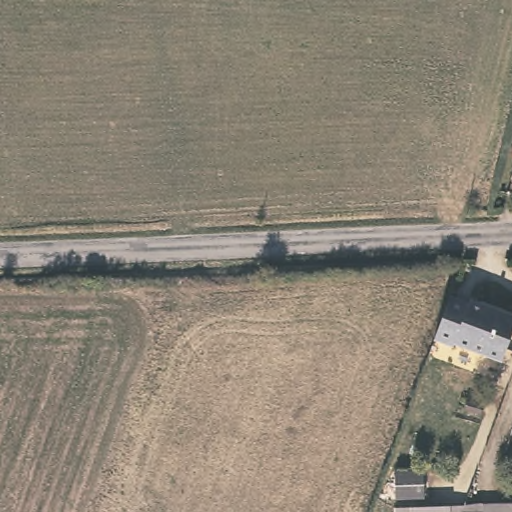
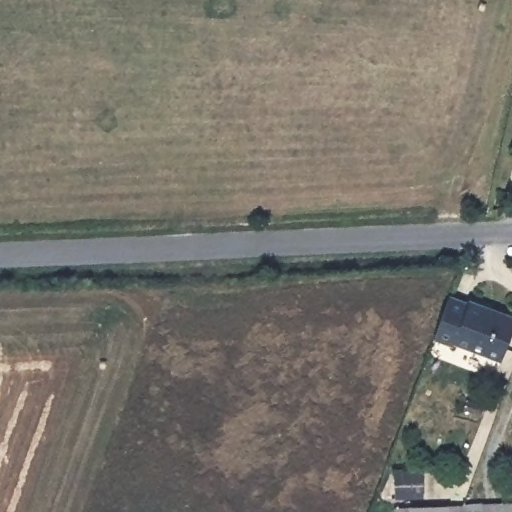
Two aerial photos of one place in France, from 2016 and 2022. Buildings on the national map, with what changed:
unchanged [(467,297),(470,294),(512,310),(512,321),(500,353),(455,336),(452,340),(434,332),(450,291),(467,297)]
unchanged [(425,467),(427,492),(396,491),(395,471),(425,467)]
unchanged [(489,506),(489,497),(512,496),(512,512),(467,512),(468,507),(489,506)]
unchanged [(467,512),(403,512),(402,502),(471,500),(468,507),(467,512)]

